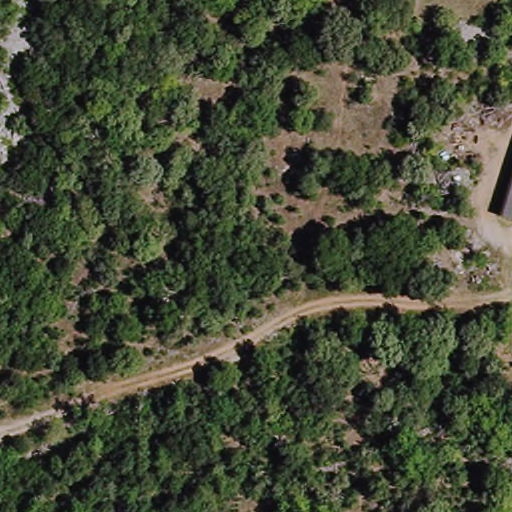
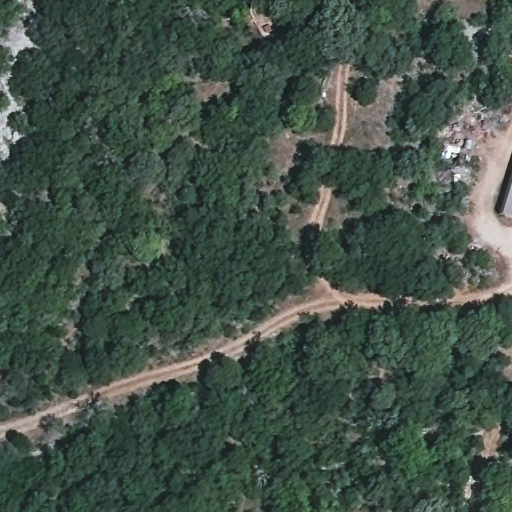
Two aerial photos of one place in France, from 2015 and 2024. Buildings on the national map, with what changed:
unchanged [(488,212),(512,149),(512,220),(488,212)]

